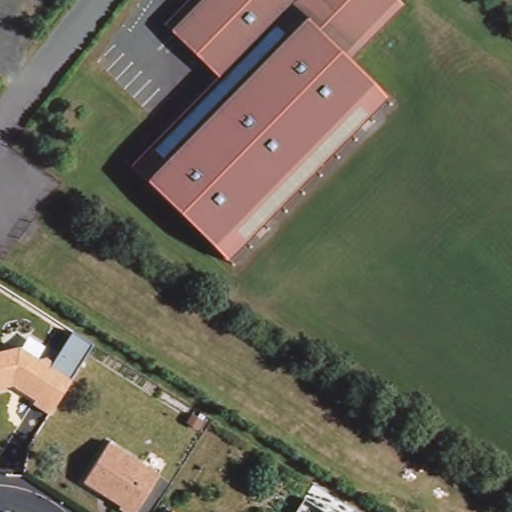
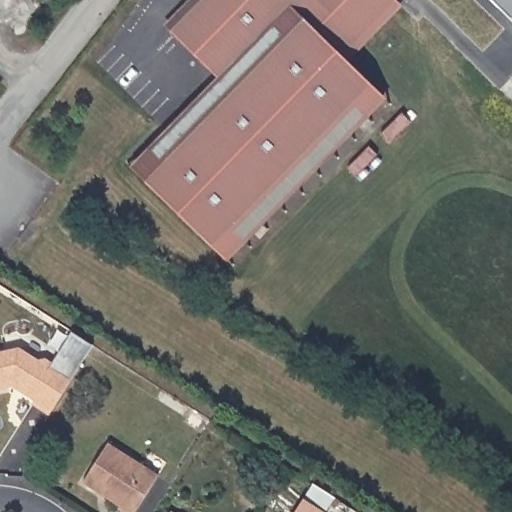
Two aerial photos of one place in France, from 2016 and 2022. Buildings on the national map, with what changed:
unchanged [(173,33),(203,0),(398,0),(402,4),(350,60),(388,97),(229,263),(139,179),(227,85),(173,33)]
unchanged [(30,399),(33,396),(11,381),(0,383),(0,346),(18,343),(37,355),(45,353),(56,361),(62,351),(79,362),(47,410),(30,399)]
unchanged [(119,507),(82,483),(107,444),(158,476),(135,512),(122,512),(117,509),(119,507)]

